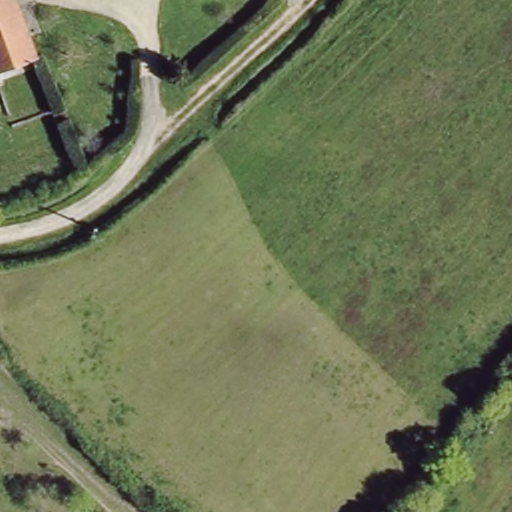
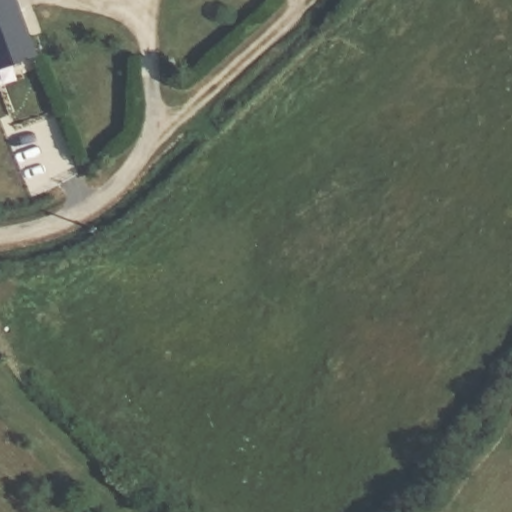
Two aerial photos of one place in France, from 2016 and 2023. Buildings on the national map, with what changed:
unchanged [(35,54),(0,67),(0,0),(15,0),(35,54)]

